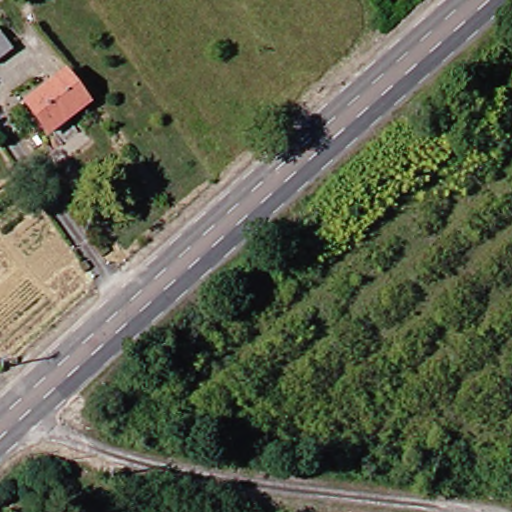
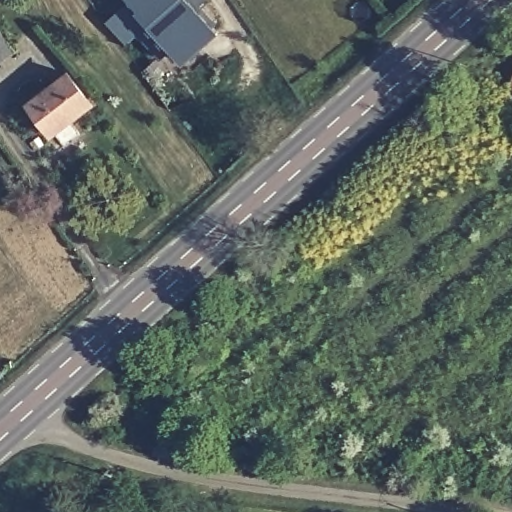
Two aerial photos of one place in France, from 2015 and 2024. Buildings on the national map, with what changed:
new [(203,0),(204,1),(193,11),(213,34),(179,65),(166,50),(155,60),(135,37),(121,49),(106,27),(133,4),(129,0),(203,0)]
unchanged [(25,103),(62,77),(83,112),(48,137),(25,103)]

